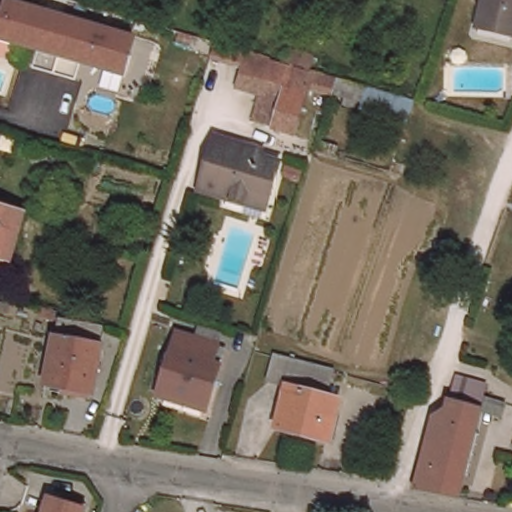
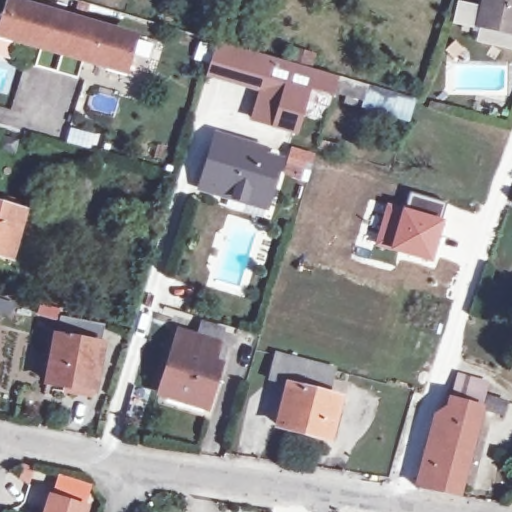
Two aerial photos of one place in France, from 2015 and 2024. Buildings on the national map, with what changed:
unchanged [(40,42),(17,35),(15,40),(0,36),(0,14),(4,15),(9,0),(50,11),(70,17),(55,67),(34,61),(40,42)]
unchanged [(479,29),(481,21),(486,0),(512,0),(512,36),(499,33),(479,29)]
unchanged [(70,17),(90,23),(132,35),(128,50),(133,51),(127,70),(104,64),(106,59),(83,52),(76,73),(55,67),(70,17)]
unchanged [(311,89),(298,132),(274,125),(282,95),(249,86),(253,73),(213,58),(219,40),(259,54),(337,76),(331,95),(311,89)]
unchanged [(416,100),(406,126),(357,111),(359,104),(331,95),(337,76),(416,100)]
unchanged [(251,204),(201,189),(211,156),(213,156),(219,136),(266,150),(265,156),(284,162),(274,195),(269,209),(251,204)]
new [(290,145),(316,153),(308,183),(281,173),(290,145)]
new [(409,191),(446,202),(441,218),(444,219),(431,262),(374,244),(386,202),(404,207),(409,191)]
unchanged [(0,254),(0,205),(21,210),(8,256),(0,254)]
unchanged [(55,326),(103,333),(96,387),(75,384),(76,376),(49,373),(55,326)]
unchanged [(175,404),(156,398),(175,336),(221,350),(203,406),(201,412),(175,404)]
unchanged [(336,373),(329,398),(339,400),(327,440),(279,427),(289,388),(271,382),(278,356),(336,373)]
unchanged [(436,421),(444,421),(451,401),(456,401),(463,376),(491,385),(487,399),(500,403),(494,419),(474,414),(454,497),(415,489),(436,421)]
unchanged [(90,510),(90,512),(50,512),(54,498),(90,510)]

